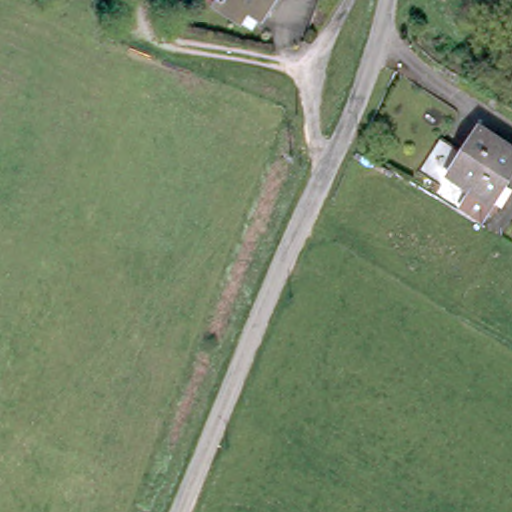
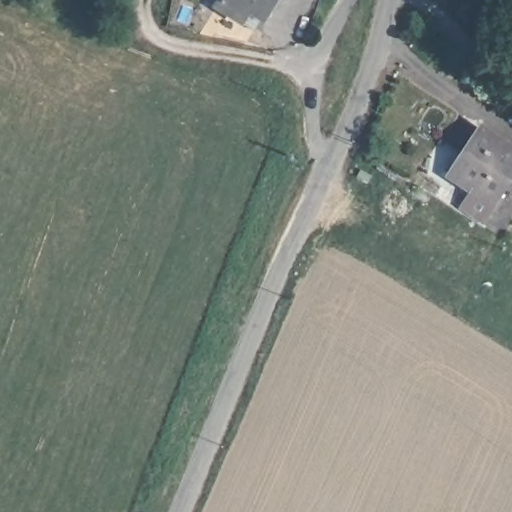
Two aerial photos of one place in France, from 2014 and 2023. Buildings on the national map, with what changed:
unchanged [(233,0),(262,0),(253,14),(233,0)]
unchanged [(487,129),(512,146),(512,181),(498,202),(457,175),(487,129)]

